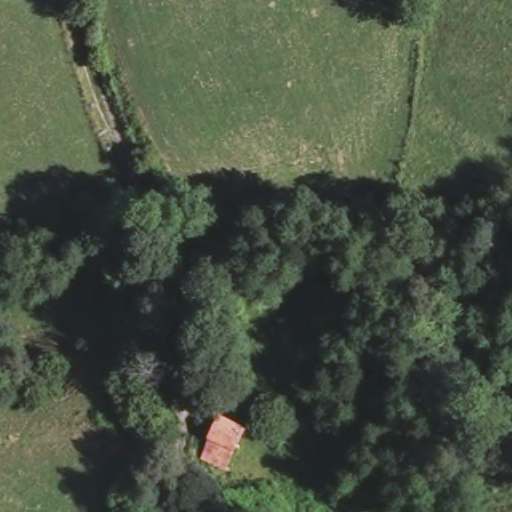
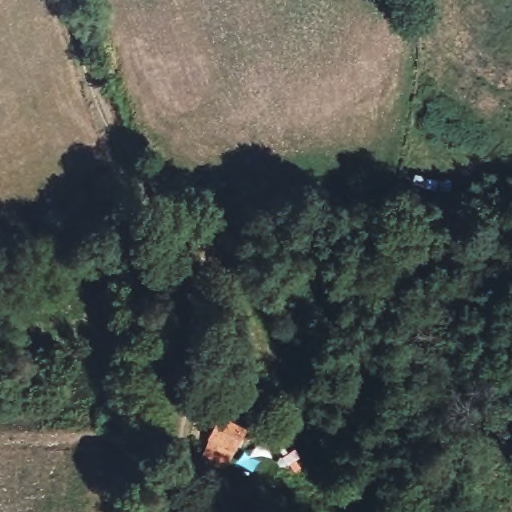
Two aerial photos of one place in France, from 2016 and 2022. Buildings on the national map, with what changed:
unchanged [(211,431),(220,410),(248,422),(234,454),(206,442),(211,431)]

